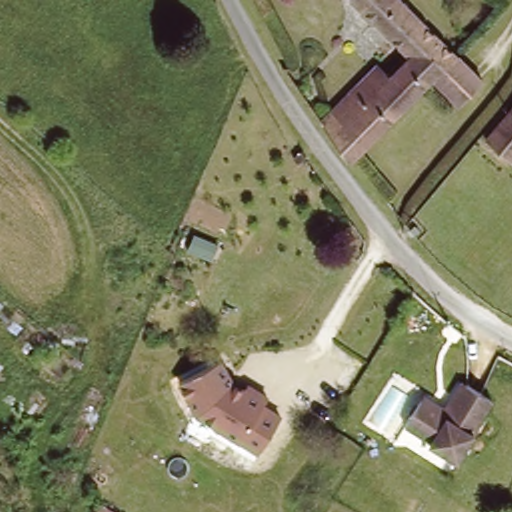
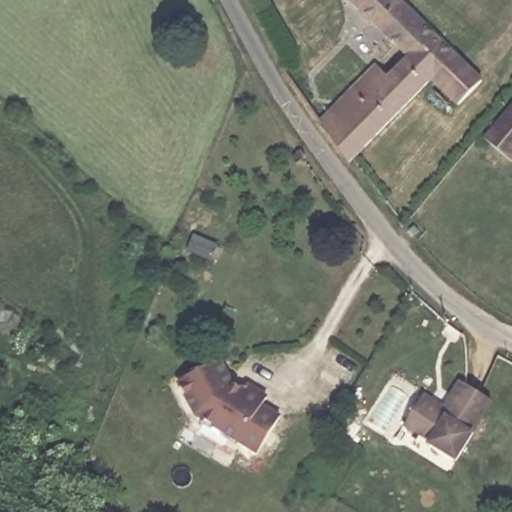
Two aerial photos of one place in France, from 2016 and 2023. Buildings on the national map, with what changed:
unchanged [(485,80),(461,104),(436,80),(351,164),(330,135),(319,120),(329,110),(332,113),(380,66),(392,79),(414,57),(357,1),(356,0),(359,0),(403,0),(485,80)]
unchanged [(512,118),(512,158),(492,140),(512,118)]
unchanged [(223,357),(231,379),(242,386),(248,379),(269,392),(265,402),(283,412),(259,450),(198,416),(180,380),(223,357)]
unchanged [(445,410),(461,381),(495,402),(458,463),(405,430),(423,397),(445,410)]

